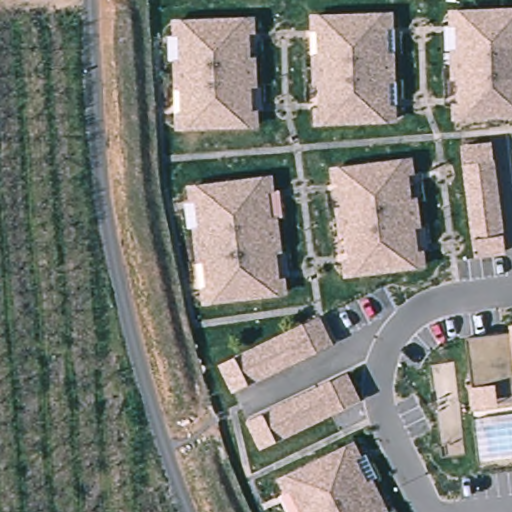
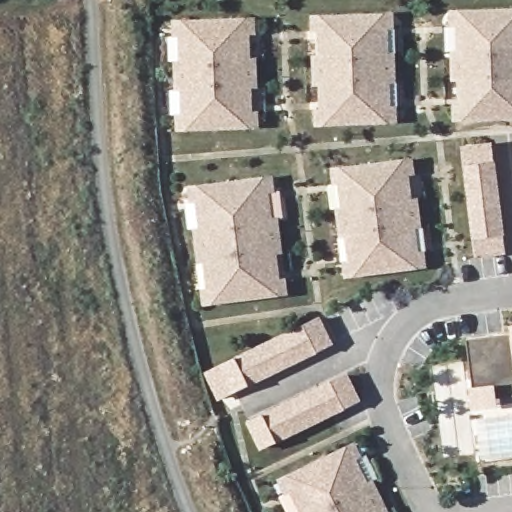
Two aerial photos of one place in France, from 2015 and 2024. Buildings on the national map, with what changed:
unchanged [(512,12),(512,65),(492,66),(490,13),(512,12)]
unchanged [(452,67),(452,53),(461,53),(460,28),(451,29),(451,14),(490,13),(492,66),(452,67)]
unchanged [(390,16),(390,30),(381,31),(381,55),(391,54),(392,69),(352,70),(350,18),(390,16)]
unchanged [(313,58),(321,57),(321,33),(311,34),(311,19),(350,18),(352,70),(313,72),(313,58)]
unchanged [(251,21),(251,35),(242,36),(243,60),(252,59),(253,74),(213,75),(211,23),(251,21)]
unchanged [(213,75),(174,76),(173,63),(183,62),(182,38),(173,38),(172,24),(211,23),(213,75)]
unchanged [(492,66),(512,65),(512,118),(494,118),(492,66)]
unchanged [(454,119),(454,105),(463,105),(462,81),(453,81),(452,67),(492,66),(494,118),(454,119)]
unchanged [(392,69),(392,84),(383,84),(384,108),(393,108),(393,122),(354,123),(352,70),(392,69)]
unchanged [(315,124),(314,110),(324,110),(323,86),(314,86),(313,72),(352,70),(354,123),(315,124)]
unchanged [(213,75),(253,74),(253,89),(244,89),(245,113),(254,113),(255,126),(215,128),(213,75)]
unchanged [(176,129),(176,115),(185,115),(183,91),(175,91),(174,76),(213,75),(215,128),(176,129)]
unchanged [(502,249),(502,254),(474,257),(473,251),(461,149),(489,146),(502,249)]
unchanged [(402,164),(409,163),(411,177),(402,178),(402,184),(405,202),(414,201),(416,215),(402,217),(376,220),(370,168),(402,164)]
unchanged [(336,210),(345,209),(342,185),(333,187),(331,173),(370,168),(376,220),(338,225),(336,210)]
unchanged [(228,185),(269,180),(271,194),(261,195),(265,221),(274,220),(276,237),(236,242),(228,185)]
unchanged [(236,242),(195,247),(193,229),(202,229),(198,203),(190,204),(188,190),(228,185),(236,242)]
unchanged [(411,255),(420,254),(422,268),(383,273),(376,220),(402,217),(416,215),(418,229),(408,231),(411,254),(411,255)]
unchanged [(344,277),(342,263),(351,262),(349,238),(340,239),(338,225),(376,220),(383,273),(344,277)]
unchanged [(236,242),(276,237),(278,254),(269,255),(272,282),(281,280),(283,294),(243,299),(236,242)]
unchanged [(202,304),(200,290),(210,289),(206,263),(197,264),(195,247),(236,242),(243,299),(202,304)]
unchanged [(328,346),(231,394),(218,369),(316,321),(328,346)]
unchanged [(511,326),(512,326),(512,334),(511,326)]
unchanged [(474,410),(471,391),(465,340),(512,334),(512,397),(493,399),(494,408),(474,410)]
unchanged [(356,403),(259,451),(246,426),(344,378),(356,403)]
unchanged [(285,511),(278,498),(284,496),(278,484),(351,448),(358,460),(349,464),(361,488),(369,484),(378,501),(383,512),(285,512),(285,511)]

